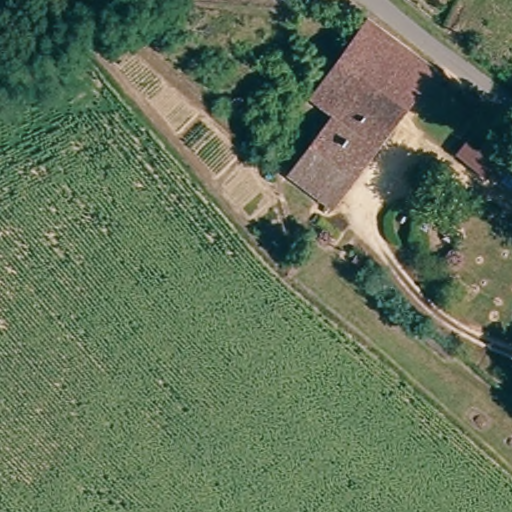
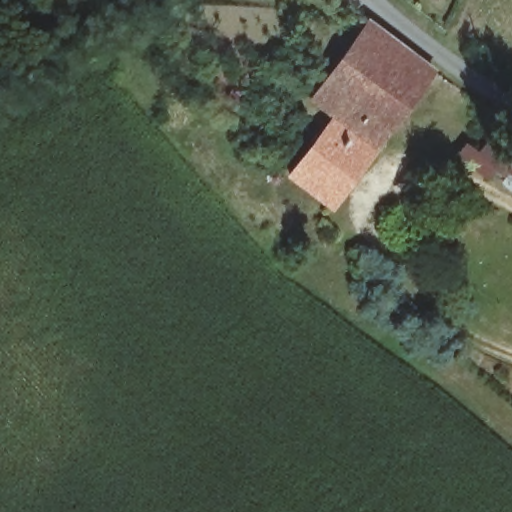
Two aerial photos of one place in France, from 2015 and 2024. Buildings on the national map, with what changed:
unchanged [(374,150),(310,100),(365,26),(428,74),(374,150)]
unchanged [(368,155),(327,212),(287,181),(329,125),(368,155)]

